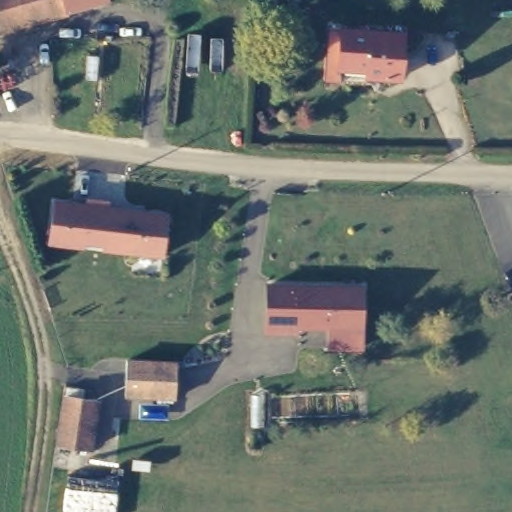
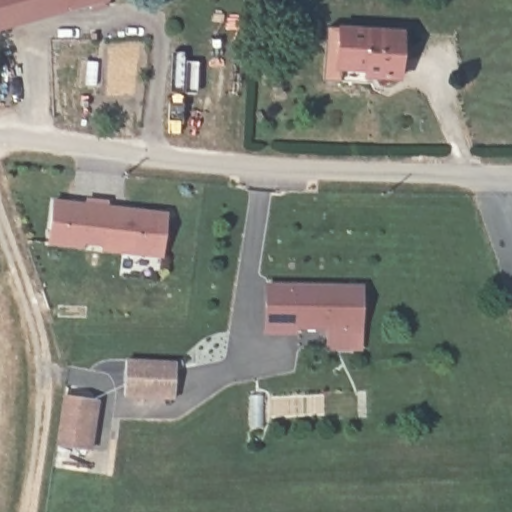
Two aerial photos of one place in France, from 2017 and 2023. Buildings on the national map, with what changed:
unchanged [(90,17),(89,13),(0,29),(0,0),(106,0),(109,13),(90,17)]
unchanged [(400,32),(399,77),(370,76),(370,71),(345,70),(345,83),(329,83),(330,30),(400,32)]
unchanged [(165,253),(49,242),(55,197),(90,200),(90,196),(112,198),(112,205),(170,210),(165,253)]
unchanged [(363,281),(361,329),(294,327),(293,334),(263,334),(267,281),(363,281)]
unchanged [(176,364),(173,397),(124,393),(128,360),(176,364)]
unchanged [(98,402),(93,451),(64,449),(69,399),(98,402)]

